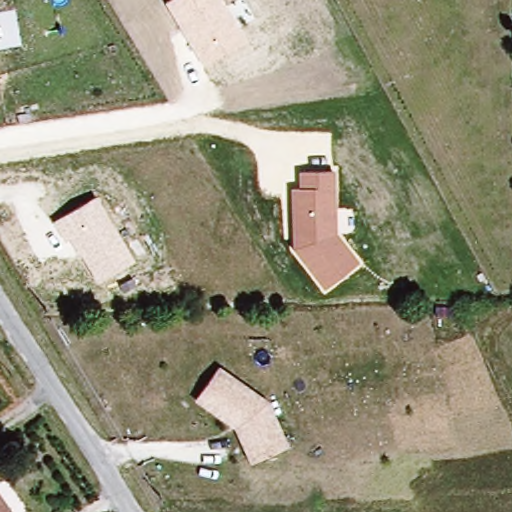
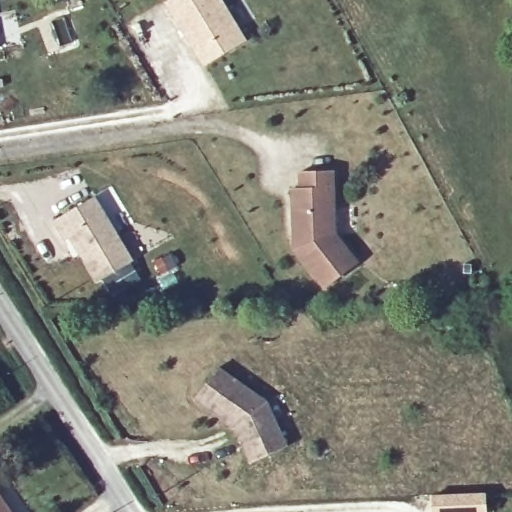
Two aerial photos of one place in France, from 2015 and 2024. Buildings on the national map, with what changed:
unchanged [(204,64),(166,2),(169,0),(223,0),(247,39),(204,64)]
unchanged [(336,235),(360,262),(324,289),(291,244),(291,187),(298,187),(298,172),(335,170),(336,235)]
unchanged [(135,261),(97,281),(72,239),(66,243),(52,221),(94,195),(135,261)]
unchanged [(215,369),(262,405),(283,449),(248,465),(232,430),(192,399),(215,369)]
unchanged [(0,491),(14,512),(0,512),(0,491)]
new [(480,493),(481,512),(431,512),(430,495),(480,493)]

